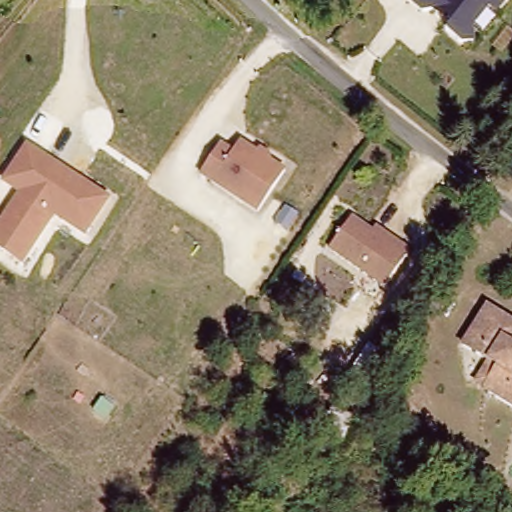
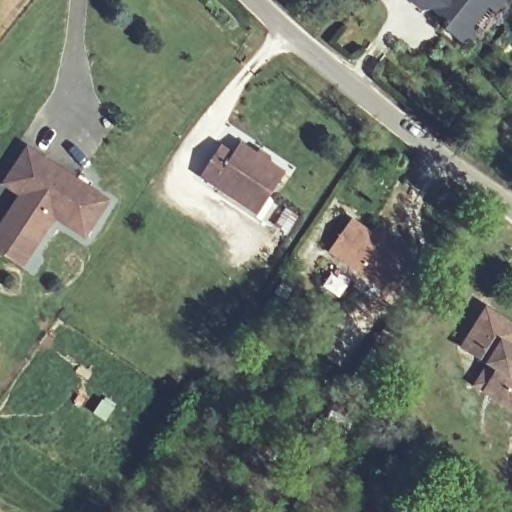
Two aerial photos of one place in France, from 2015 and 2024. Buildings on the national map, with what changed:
unchanged [(490,7),(476,27),(478,43),(462,42),(445,26),(444,17),(431,7),(422,10),(410,0),(509,0),(499,14),(490,7)]
unchanged [(235,150),(240,143),(287,173),(260,212),(201,176),(219,143),(235,150)]
unchanged [(90,237),(57,220),(27,263),(0,250),(0,225),(19,196),(4,181),(27,146),(112,198),(90,237)]
unchanged [(373,230),(379,224),(412,252),(385,291),(328,252),(354,217),(373,230)]
unchanged [(485,361),(462,347),(481,312),(512,329),(512,340),(509,347),(512,348),(512,407),(480,390),(470,384),(485,361)]

